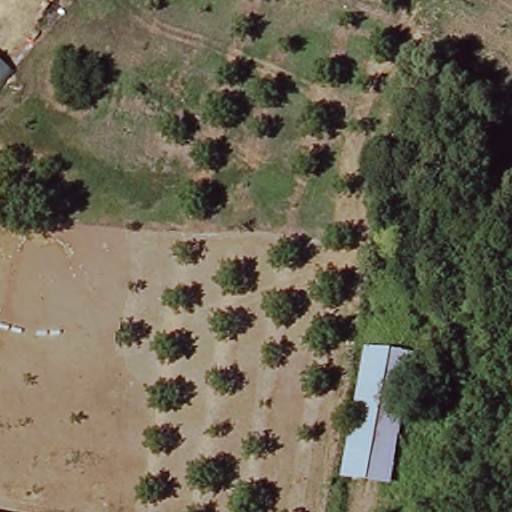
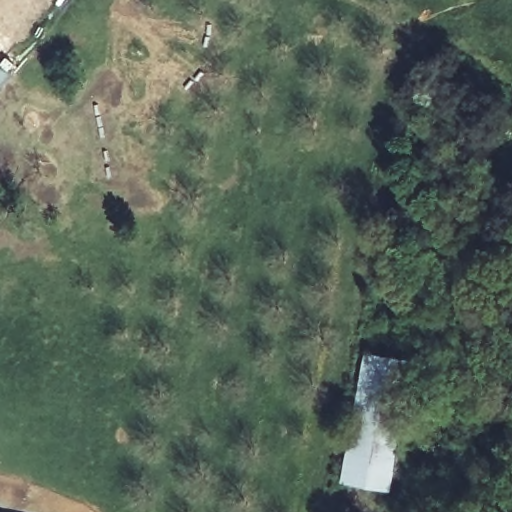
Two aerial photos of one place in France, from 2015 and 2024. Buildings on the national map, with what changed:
unchanged [(10,77),(0,90),(0,69),(10,77)]
unchanged [(395,492),(345,485),(368,354),(417,362),(395,492)]

